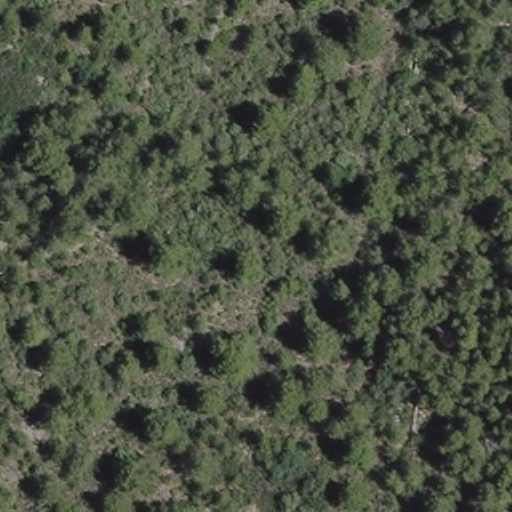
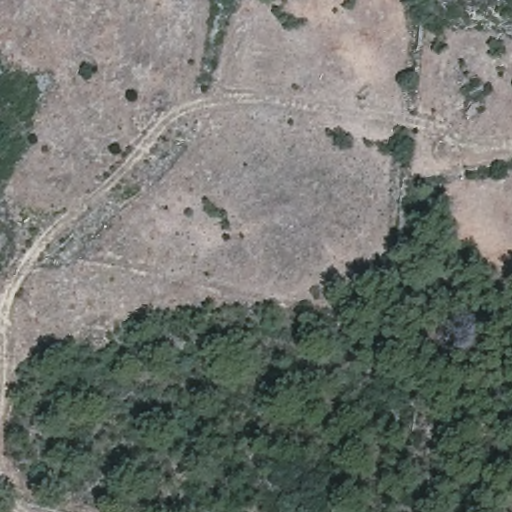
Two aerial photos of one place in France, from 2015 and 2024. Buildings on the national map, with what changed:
[]

